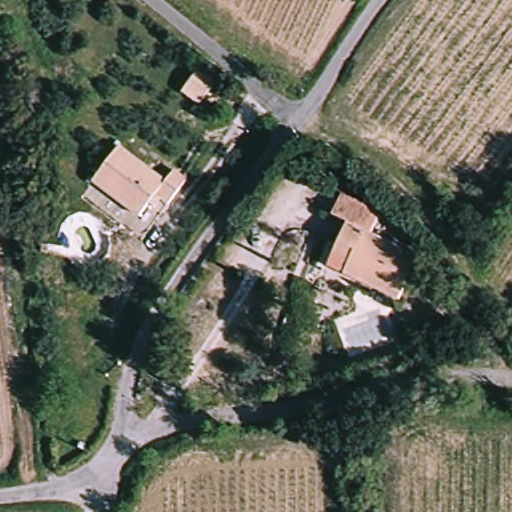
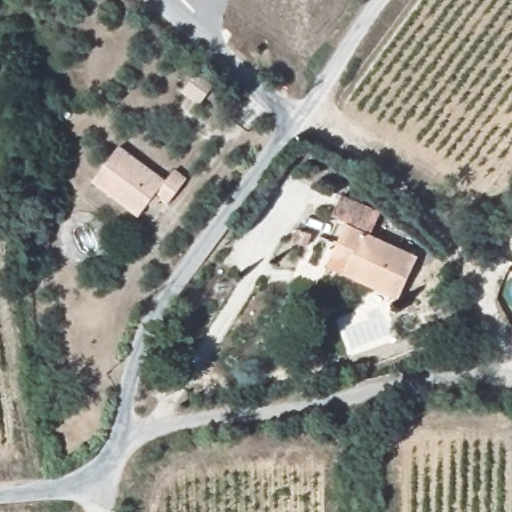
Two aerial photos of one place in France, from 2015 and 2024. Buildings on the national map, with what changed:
unchanged [(165,176),(176,166),(188,176),(167,202),(154,193),(138,215),(91,182),(118,144),(165,176)]
unchanged [(345,221),(331,212),(342,194),(380,213),(375,232),(420,251),(393,296),(356,277),(350,285),(321,275),(345,221)]

